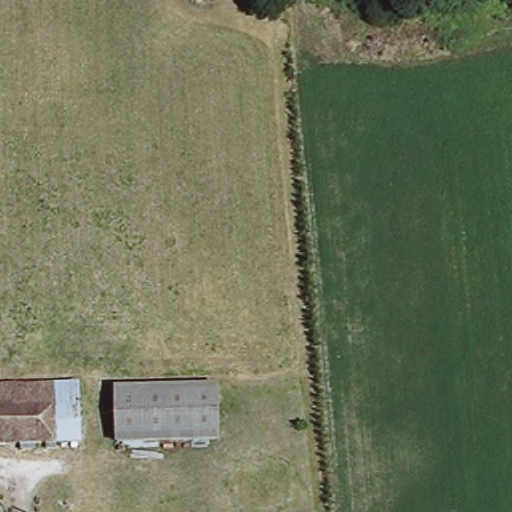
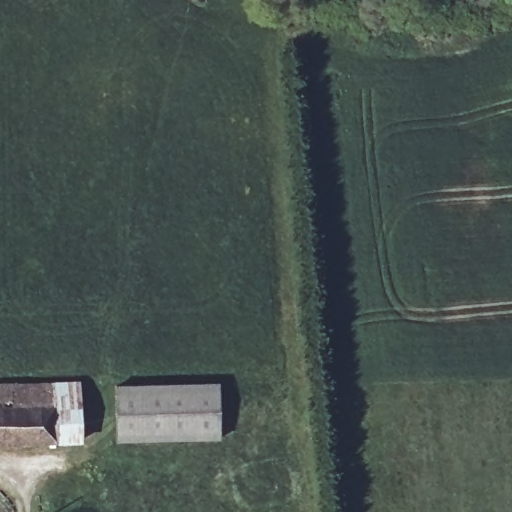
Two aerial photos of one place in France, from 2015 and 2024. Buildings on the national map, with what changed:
unchanged [(224,440),(114,439),(114,378),(224,380),(224,440)]
unchanged [(0,442),(0,382),(21,382),(64,383),(79,383),(81,440),(0,442)]

